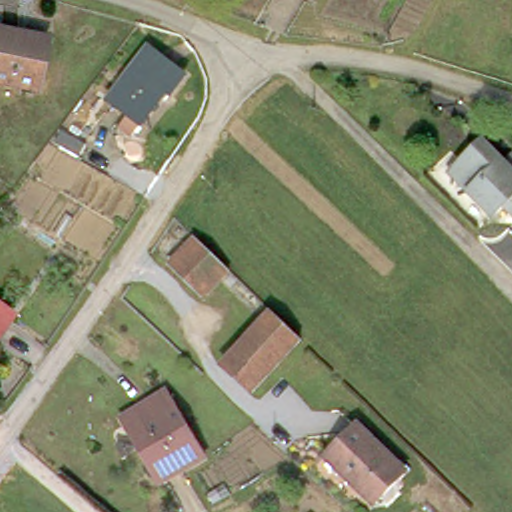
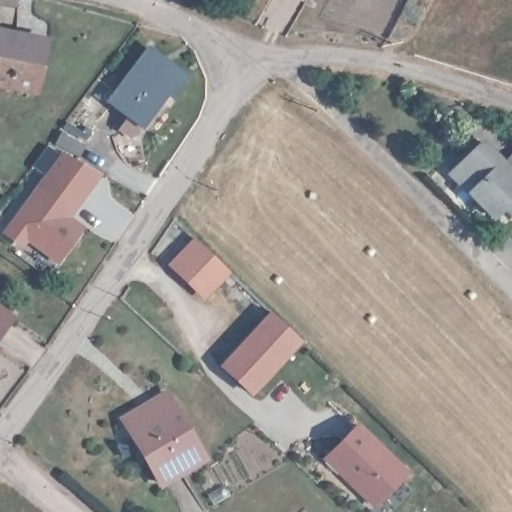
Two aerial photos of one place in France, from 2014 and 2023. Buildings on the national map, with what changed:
unchanged [(36,91),(0,85),(0,31),(45,41),(36,91)]
unchanged [(121,128),(130,116),(111,101),(136,69),(135,68),(151,47),(186,73),(169,95),(166,92),(142,125),(133,137),(121,128)]
unchanged [(83,157),(58,144),(64,132),(89,145),(83,157)]
unchanged [(477,201),(445,170),(457,158),(476,138),(489,151),(488,153),(498,162),(509,150),(512,152),(512,215),(499,202),(492,210),(489,213),(477,201)]
new [(101,174),(70,215),(85,226),(58,264),(27,240),(22,247),(2,231),(60,150),(101,174)]
unchanged [(228,271),(204,296),(171,264),(194,240),(228,271)]
unchanged [(301,340),(253,392),(221,364),(271,311),(301,340)]
unchanged [(0,335),(0,315),(9,321),(0,335)]
unchanged [(128,425),(123,417),(167,391),(171,398),(206,457),(162,482),(128,425)]
unchanged [(329,456),(357,427),(405,475),(373,507),(344,479),(325,460),(329,456)]

